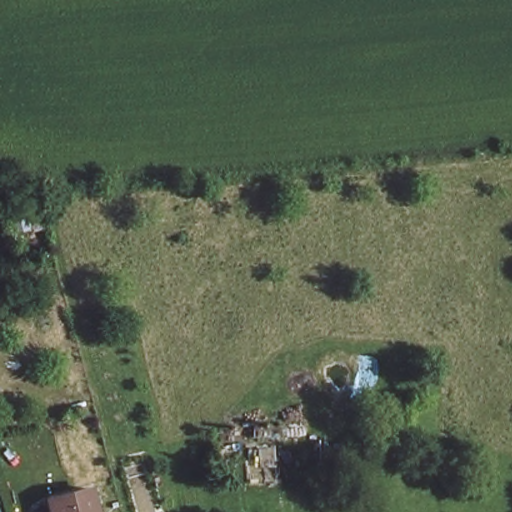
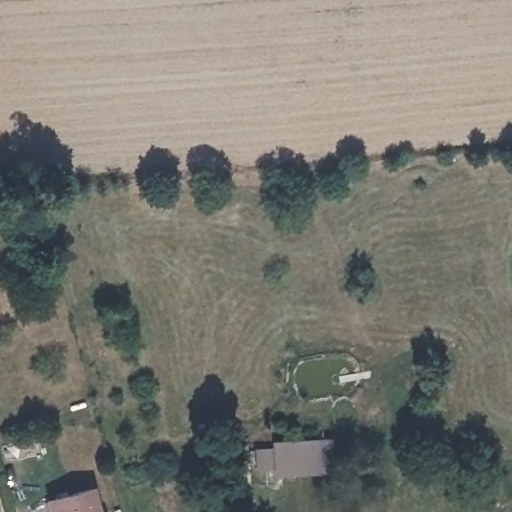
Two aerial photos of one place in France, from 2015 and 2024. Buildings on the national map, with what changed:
new [(272,446),(271,440),(331,437),(335,471),(273,481),(250,483),(248,471),(252,471),(250,448),(272,446)]
unchanged [(47,500),(88,488),(95,512),(51,512),(47,500)]

